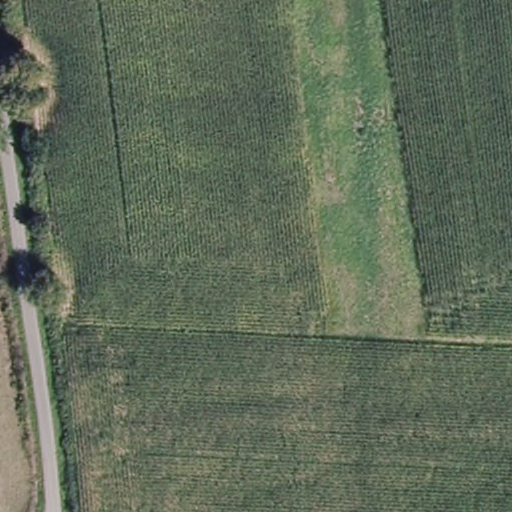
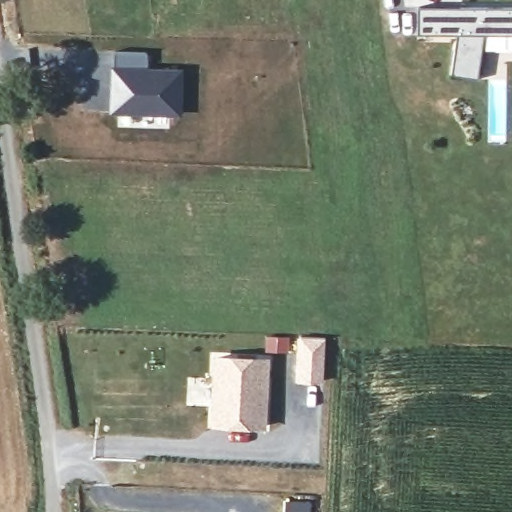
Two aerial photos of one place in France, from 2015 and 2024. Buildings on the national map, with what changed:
new [(477,77),(452,74),(458,33),(419,33),(419,8),(512,8),(512,50),(482,50),(477,77)]
new [(113,50),(149,51),(149,65),(185,68),(182,117),(164,119),(109,113),(113,50)]
new [(215,354),(271,358),(268,428),(211,425),(215,354)]

